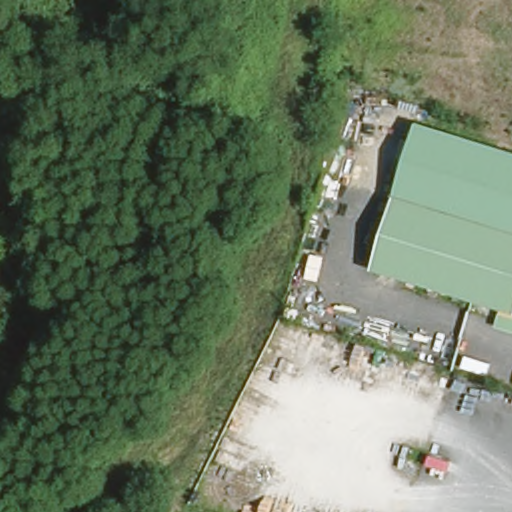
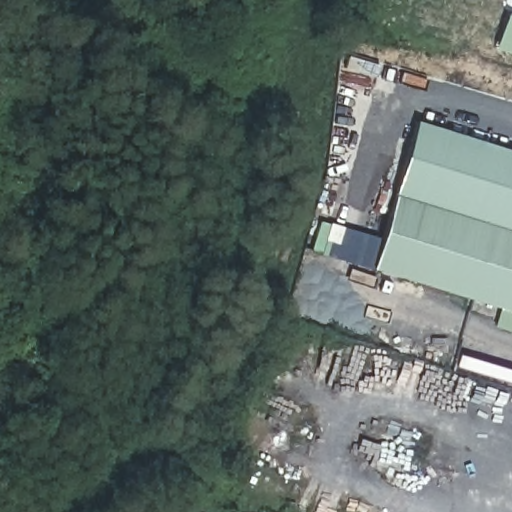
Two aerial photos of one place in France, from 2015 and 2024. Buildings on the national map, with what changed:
new [(512,55),(496,49),(505,13),(512,16),(512,55)]
unchanged [(413,120),(512,151),(512,230),(390,192),(413,120)]
unchanged [(390,192),(512,230),(512,314),(366,268),(390,192)]

